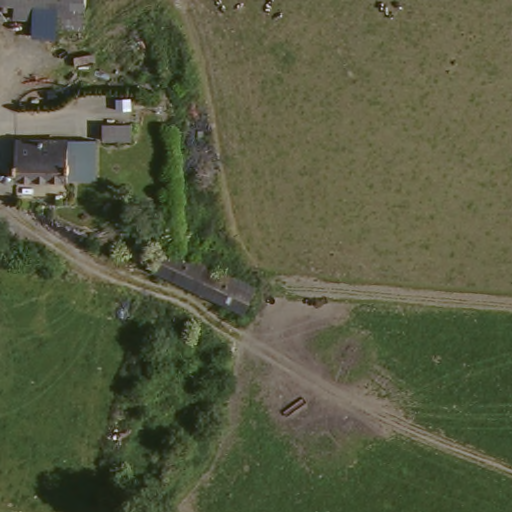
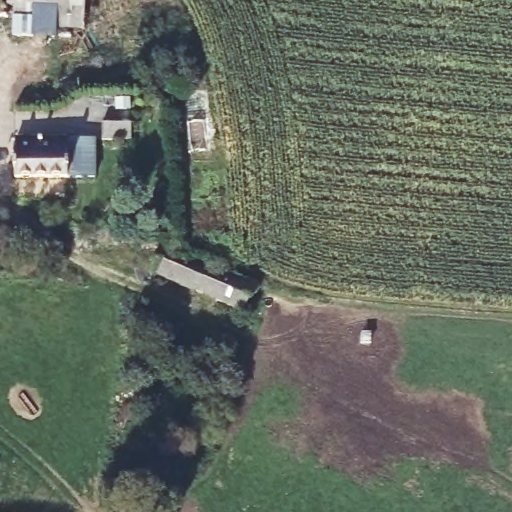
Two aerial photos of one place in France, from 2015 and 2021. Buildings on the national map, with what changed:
unchanged [(81,36),(50,34),(50,11),(0,8),(0,0),(82,0),(81,36)]
unchanged [(100,127),(127,130),(125,149),(97,146),(100,127)]
unchanged [(9,177),(11,138),(61,140),(59,180),(9,177)]
unchanged [(175,254),(257,293),(242,320),(238,318),(152,279),(164,249),(175,254)]

